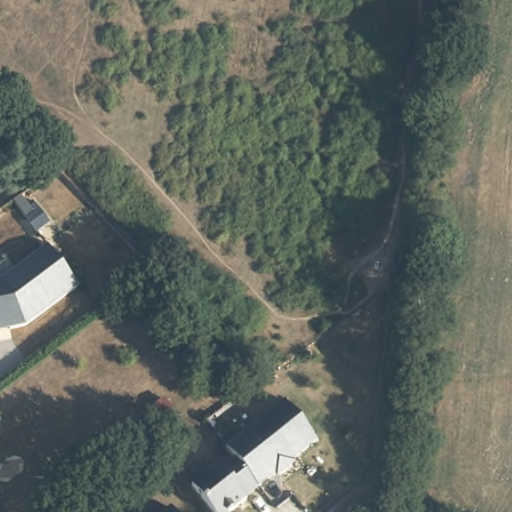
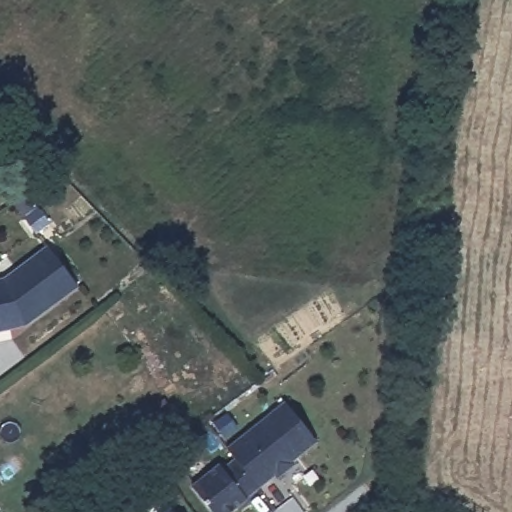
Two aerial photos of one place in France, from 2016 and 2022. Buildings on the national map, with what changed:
unchanged [(36,237),(11,201),(18,196),(33,217),(38,213),(49,228),(36,237)]
unchanged [(49,247),(79,287),(27,327),(12,330),(0,332),(0,284),(49,247)]
unchanged [(224,469),(237,460),(229,449),(289,403),(321,445),(300,461),(294,470),(282,479),(277,478),(247,500),(248,502),(234,512),(210,512),(192,486),(221,464),(224,469)]
unchanged [(172,512),(167,512),(171,509),(172,512)]

